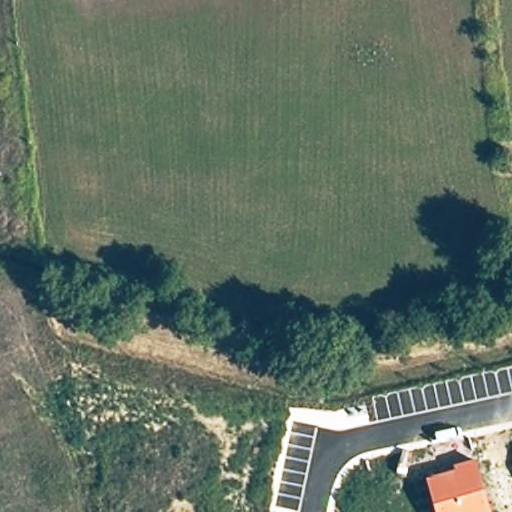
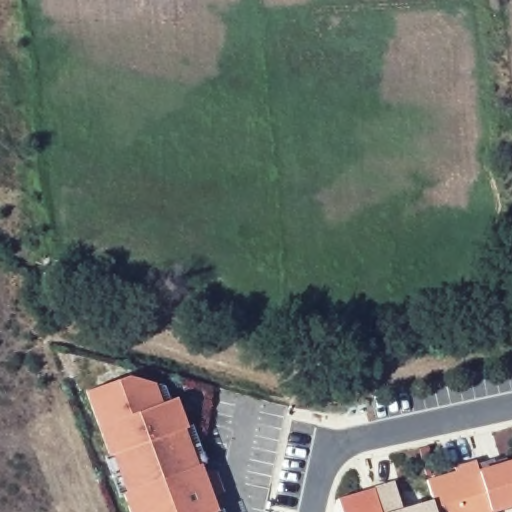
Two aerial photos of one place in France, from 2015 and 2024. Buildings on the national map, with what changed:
new [(119,494),(105,457),(109,455),(85,391),(126,376),(153,383),(162,385),(167,400),(175,397),(186,427),(191,425),(205,462),(200,465),(203,472),(207,470),(215,472),(222,492),(211,496),(217,511),(221,510),(222,512),(130,512),(123,492),(119,494)]
unchanged [(496,471),(512,467),(512,505),(490,511),(477,468),(494,464),(496,471)]
unchanged [(427,485),(462,475),(461,470),(476,466),(477,468),(490,511),(490,512),(435,512),(434,507),(427,485)]
unchanged [(398,487),(406,512),(384,512),(380,492),(398,487)]
new [(380,491),(380,492),(384,512),(345,512),(342,501),(380,491)]
unchanged [(417,512),(434,507),(435,512),(417,512)]

